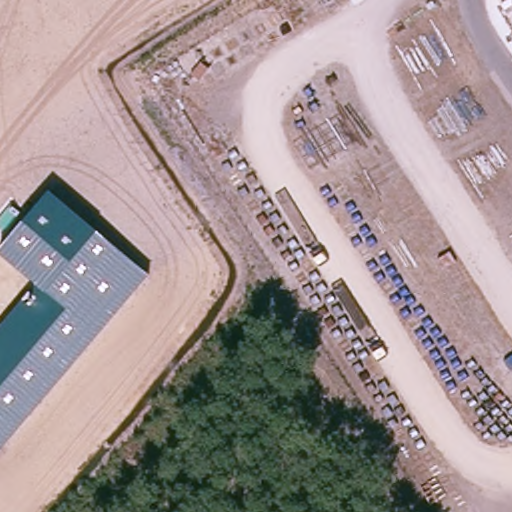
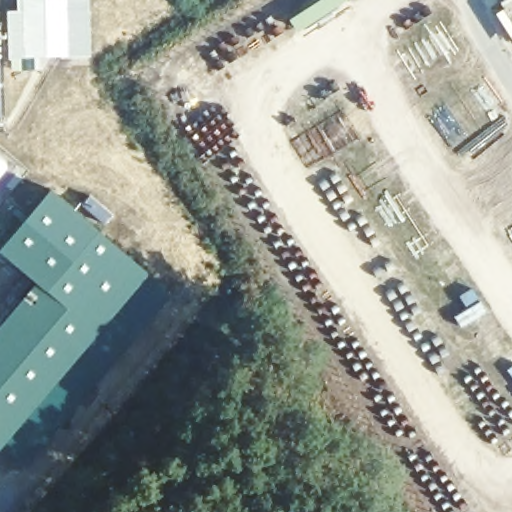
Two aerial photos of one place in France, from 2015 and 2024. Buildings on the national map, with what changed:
new [(23,9),(22,0),(88,0),(90,56),(10,57),(8,10),(23,9)]
unchanged [(502,5),(510,0),(512,0),(512,20),(502,5)]
unchanged [(0,327),(37,283),(0,251),(52,191),(96,229),(149,273),(0,450),(0,327)]

